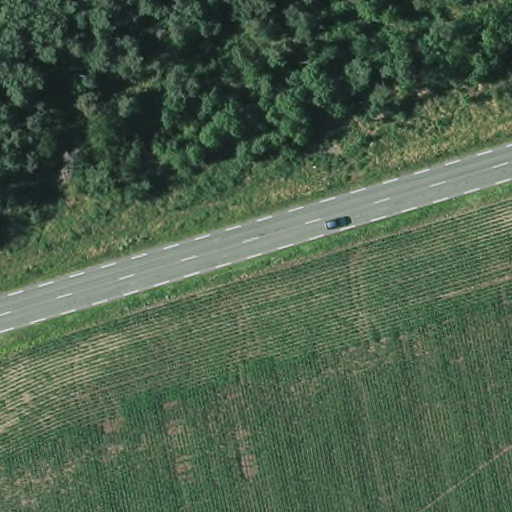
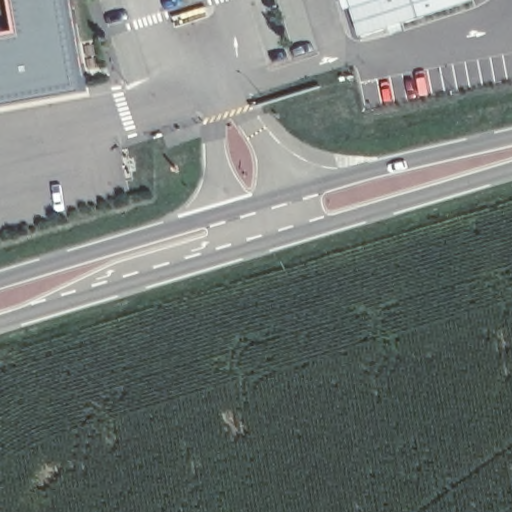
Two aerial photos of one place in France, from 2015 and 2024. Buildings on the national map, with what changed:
new [(74,0),(77,15),(87,13),(95,49),(83,51),(90,90),(0,106),(0,0),(74,0)]
new [(413,8),(355,24),(347,0),(471,0),(417,17),(413,8)]

